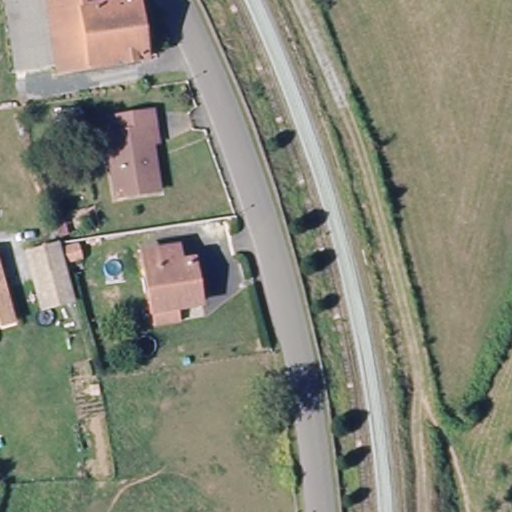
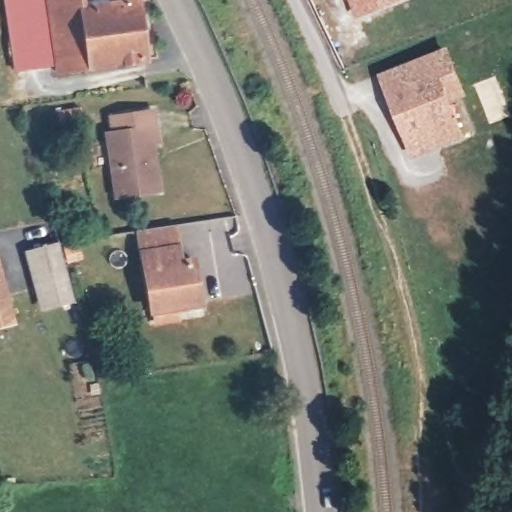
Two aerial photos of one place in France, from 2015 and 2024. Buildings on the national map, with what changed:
unchanged [(46,0),(56,62),(20,69),(13,70),(7,24),(5,2),(4,0),(46,0)]
unchanged [(56,62),(46,0),(82,0),(83,6),(135,1),(144,60),(57,71),(56,62)]
new [(350,0),(403,0),(357,19),(350,0)]
new [(447,46),(468,96),(451,102),(467,137),(413,159),(378,76),(447,46)]
unchanged [(77,102),(80,117),(56,120),(54,105),(77,102)]
unchanged [(154,107),(157,139),(152,140),(158,187),(118,192),(109,131),(112,130),(110,112),(154,107)]
unchanged [(156,317),(154,305),(145,247),(177,243),(180,259),(195,257),(201,296),(177,301),(178,312),(156,317)]
unchanged [(67,274),(75,301),(44,308),(29,252),(59,244),(67,274)]
unchanged [(0,326),(0,263),(16,322),(0,326)]

